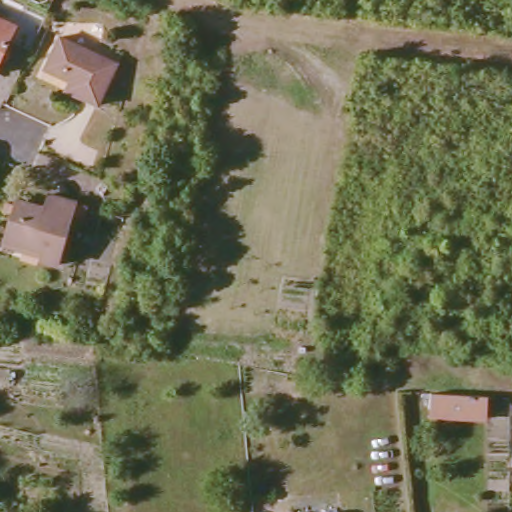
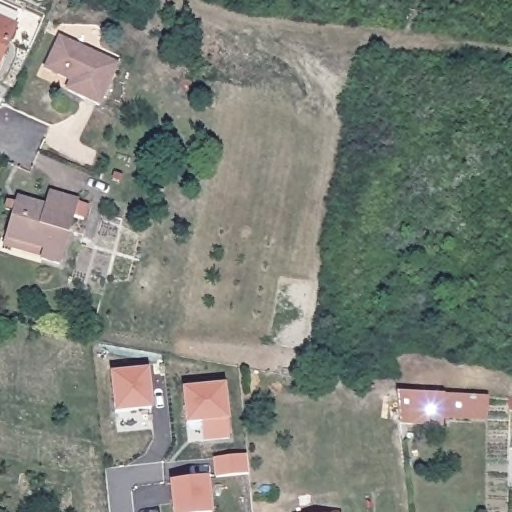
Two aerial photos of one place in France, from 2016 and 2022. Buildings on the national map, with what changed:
unchanged [(0,41),(0,24),(6,27),(0,41)]
unchanged [(115,62),(95,111),(59,94),(64,82),(39,71),(54,36),(115,62)]
unchanged [(4,237),(14,199),(42,206),(47,191),(79,200),(88,202),(84,217),(74,214),(59,262),(37,256),(40,248),(4,237)]
new [(115,413),(111,372),(149,368),(152,408),(115,413)]
new [(225,385),(229,422),(228,441),(204,442),(204,423),(187,426),(184,390),(225,385)]
unchanged [(432,422),(433,396),(492,399),(492,421),(432,422)]
new [(212,512),(173,512),(170,482),(209,479),(212,512)]

